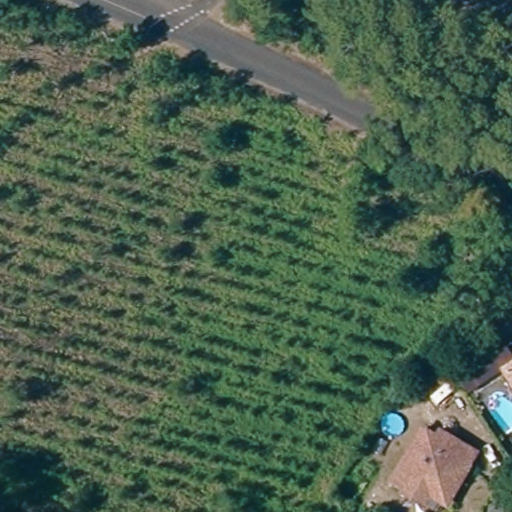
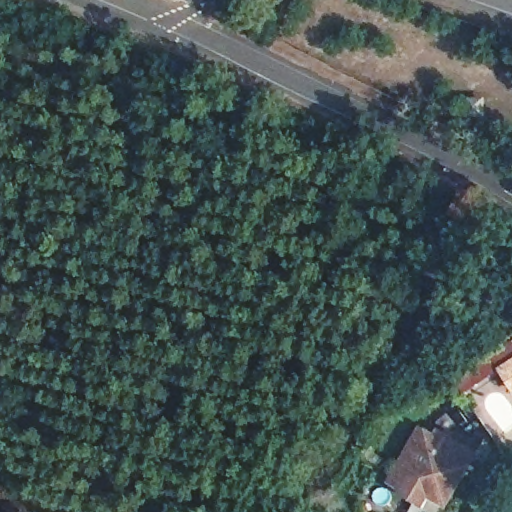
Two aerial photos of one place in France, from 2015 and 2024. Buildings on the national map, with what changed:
unchanged [(512,392),(497,370),(512,359),(512,392)]
unchanged [(387,485),(390,480),(420,429),(433,436),(436,431),(473,453),(444,504),(440,501),(434,512),(387,485)]

